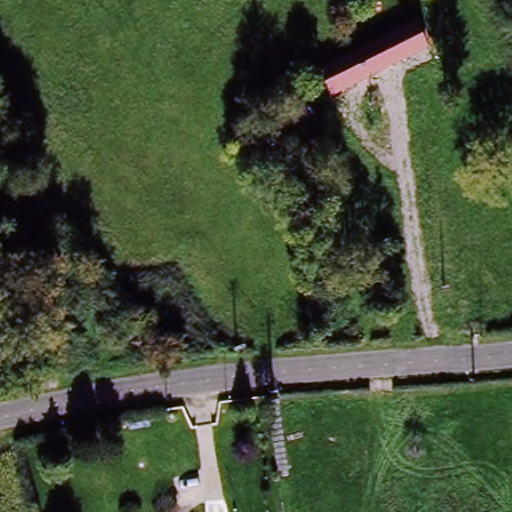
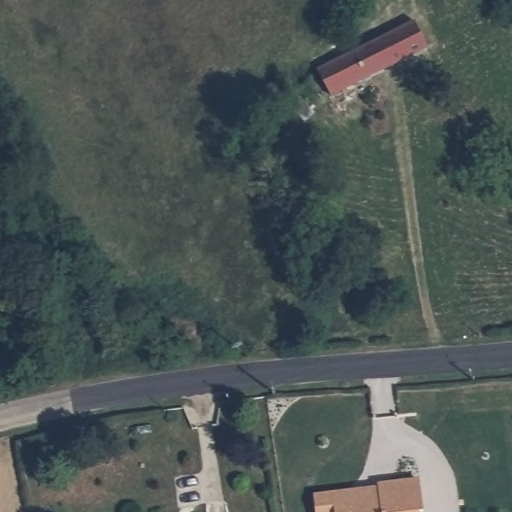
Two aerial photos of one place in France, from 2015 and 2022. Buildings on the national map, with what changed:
unchanged [(399,33),(414,55),(331,94),(318,71),(399,33)]
new [(421,512),(316,512),(314,494),(378,487),(378,484),(418,478),(421,510),(421,512)]

